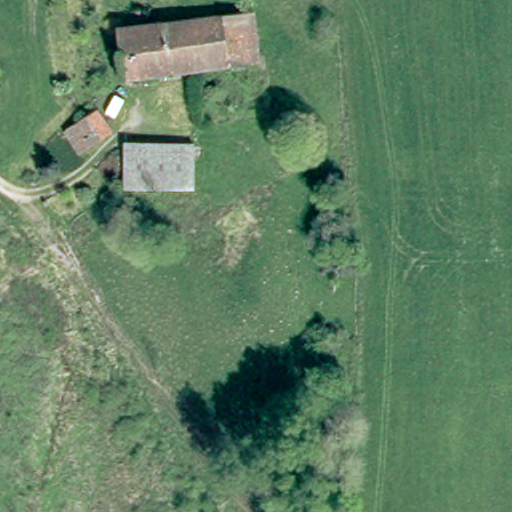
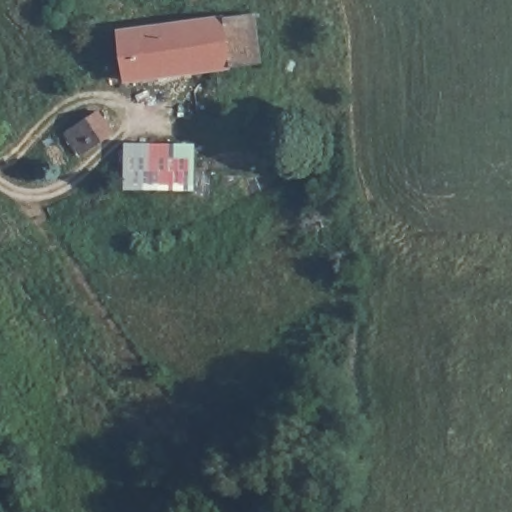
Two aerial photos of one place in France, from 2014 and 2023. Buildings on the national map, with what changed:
unchanged [(121,29),(253,9),(261,62),(200,71),(128,81),(121,29)]
unchanged [(112,139),(80,161),(60,132),(91,111),(112,139)]
unchanged [(191,188),(191,192),(124,190),(126,143),(126,141),(195,142),(191,188)]

